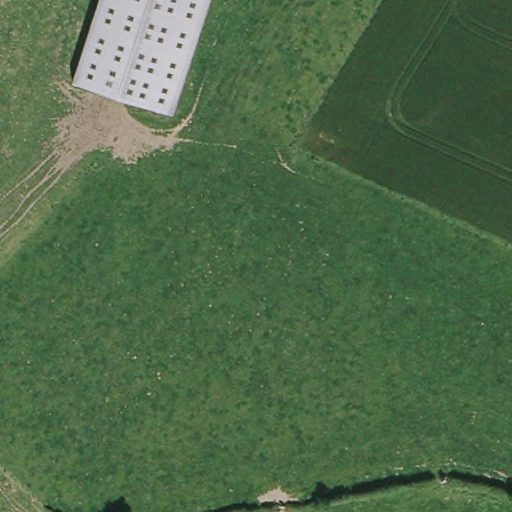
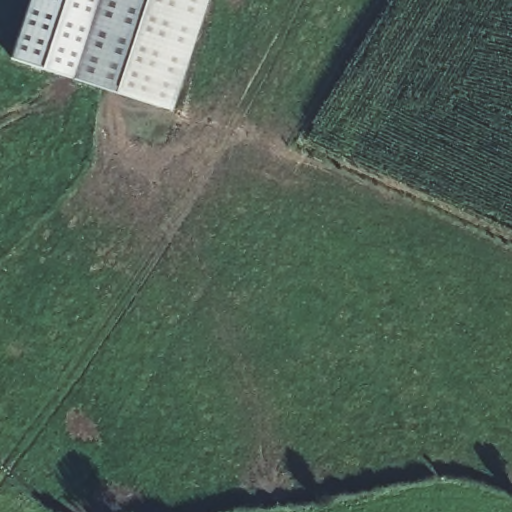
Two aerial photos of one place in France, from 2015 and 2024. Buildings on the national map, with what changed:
new [(8,58),(27,0),(100,0),(75,79),(8,58)]
unchanged [(100,0),(210,0),(173,115),(104,92),(74,82),(100,0)]

